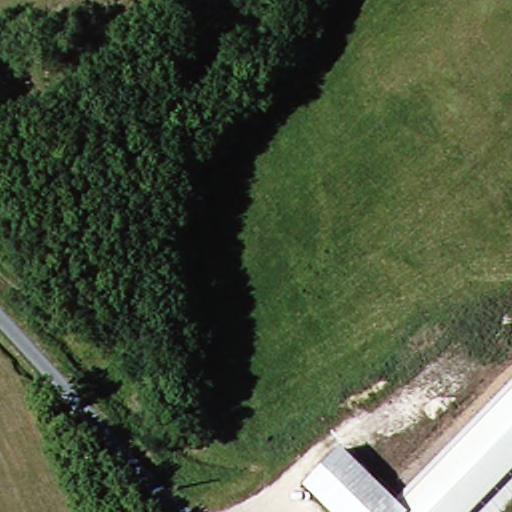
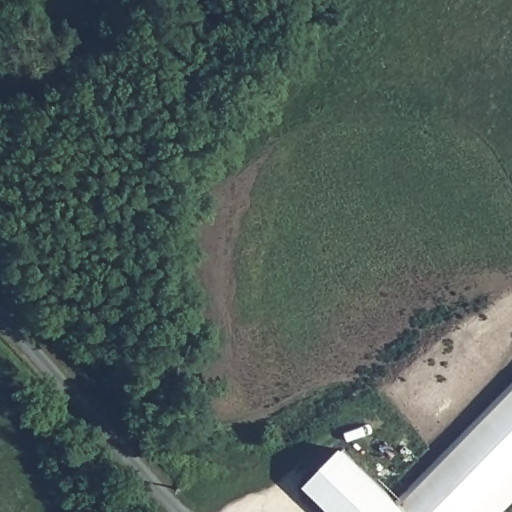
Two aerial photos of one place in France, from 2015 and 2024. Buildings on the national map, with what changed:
unchanged [(512,401),(512,478),(478,512),(414,512),(407,505),(512,401)]
unchanged [(365,490),(388,512),(344,512),(312,483),(349,446),(379,477),(365,490)]
unchanged [(407,505),(414,512),(388,512),(365,490),(379,477),(407,505)]

